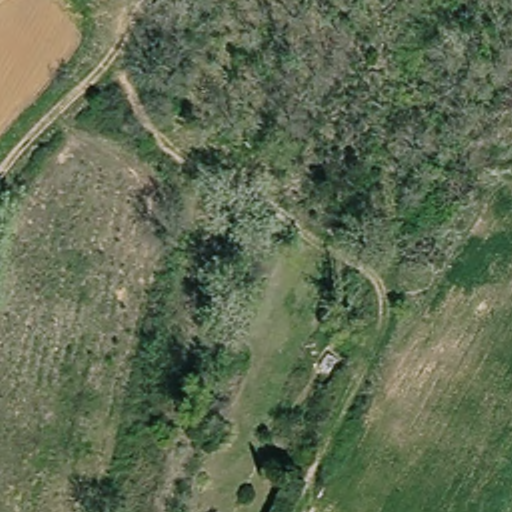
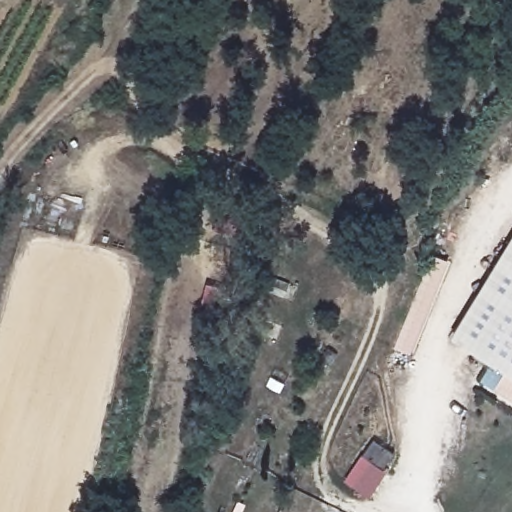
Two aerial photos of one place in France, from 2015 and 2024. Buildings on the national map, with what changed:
new [(512,234),(512,376),(449,338),(512,234)]
new [(393,349),(430,255),(445,260),(409,355),(393,349)]
new [(489,362),(512,376),(512,400),(480,381),(489,362)]
new [(368,497),(344,480),(361,455),(372,439),(393,455),(383,470),(385,471),(368,497)]

